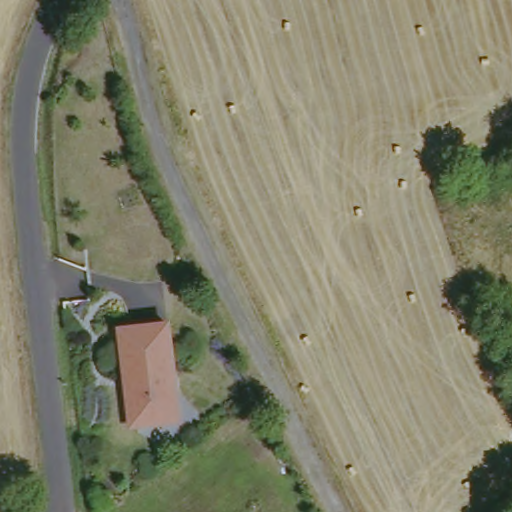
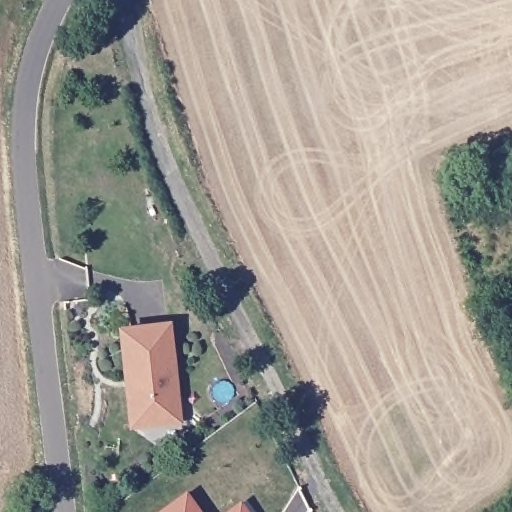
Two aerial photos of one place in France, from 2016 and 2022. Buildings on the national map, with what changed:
unchanged [(174,417),(136,422),(131,391),(136,390),(128,329),(173,325),(181,392),(183,417),(174,417)]
new [(186,491),(201,512),(157,512),(186,491)]
new [(240,501),(249,512),(225,512),(240,501)]

